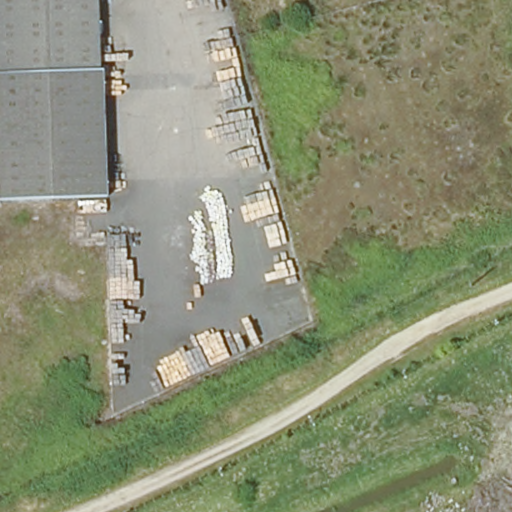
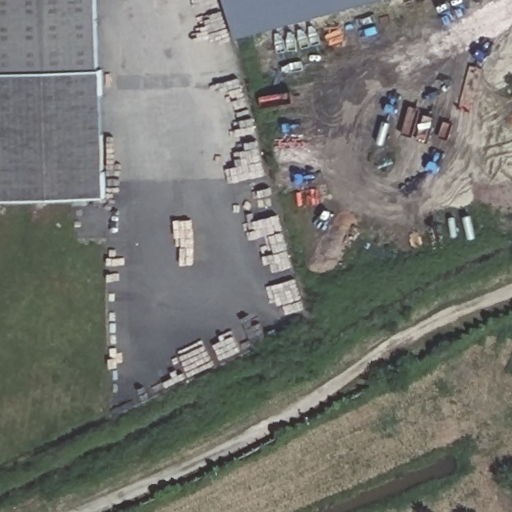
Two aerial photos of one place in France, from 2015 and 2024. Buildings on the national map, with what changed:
unchanged [(98,66),(103,66),(104,91),(0,92),(0,0),(96,0),(98,66)]
new [(239,38),(228,0),(377,0),(239,38)]
unchanged [(104,91),(105,195),(0,197),(0,92),(104,91)]

